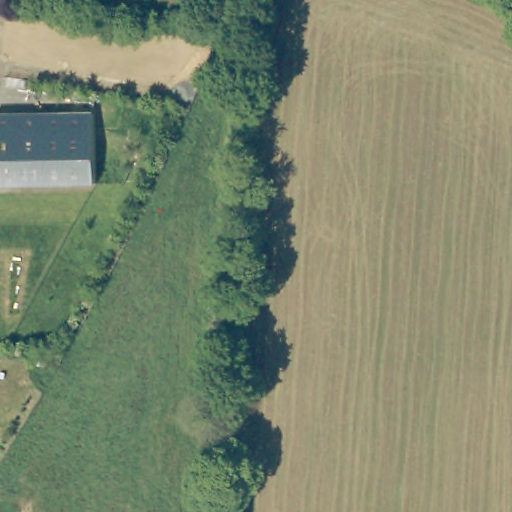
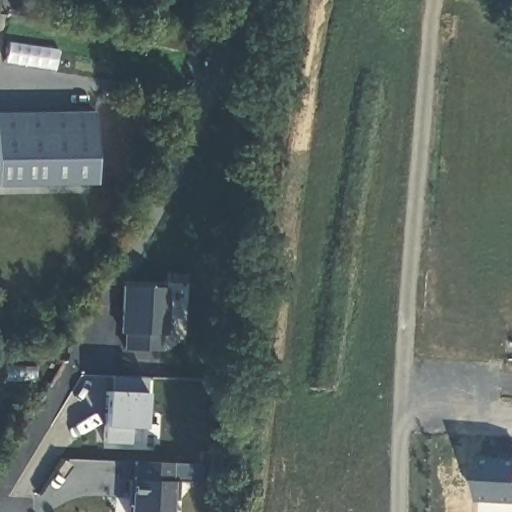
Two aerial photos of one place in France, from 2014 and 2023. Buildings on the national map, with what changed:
unchanged [(99,121),(97,191),(0,189),(0,119),(99,121)]
new [(126,350),(122,333),(122,286),(169,288),(169,335),(164,351),(126,350)]
new [(147,392),(146,428),(135,428),(132,444),(104,443),(108,427),(107,392),(114,375),(147,377),(147,392)]
new [(132,461),(177,463),(173,512),(132,512),(132,461)]

